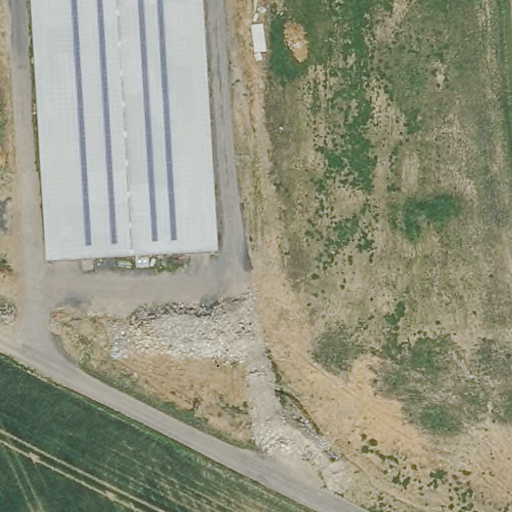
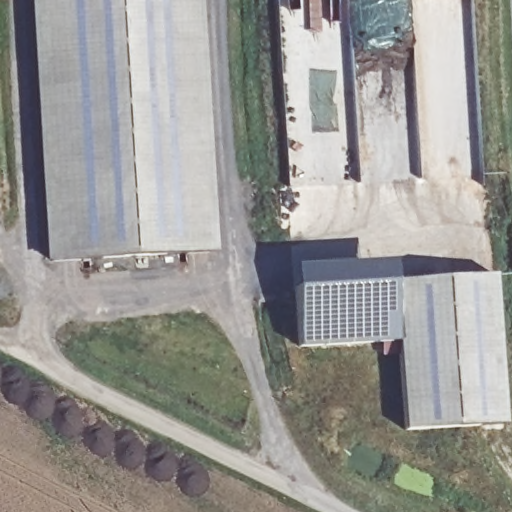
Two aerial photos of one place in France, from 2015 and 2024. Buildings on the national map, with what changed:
unchanged [(31,0),(203,0),(218,252),(46,262),(31,0)]
new [(493,270),(500,431),(398,436),(394,334),(297,338),(295,278),(493,270)]

